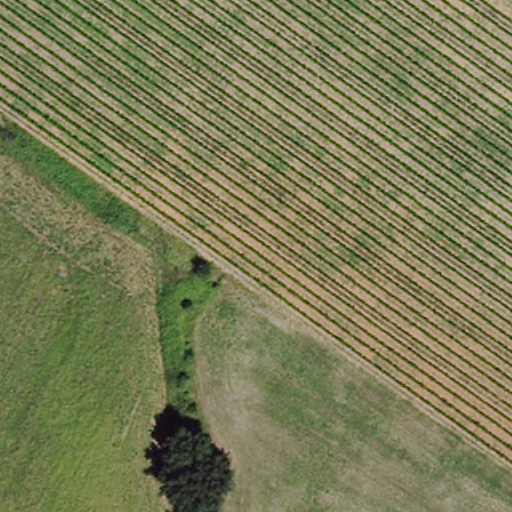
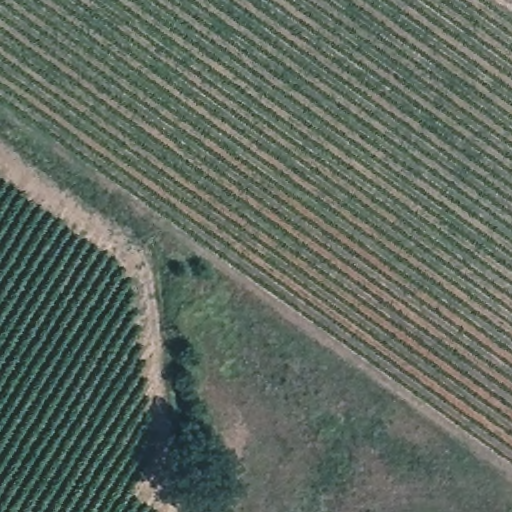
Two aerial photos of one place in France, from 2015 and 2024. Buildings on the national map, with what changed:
[]

